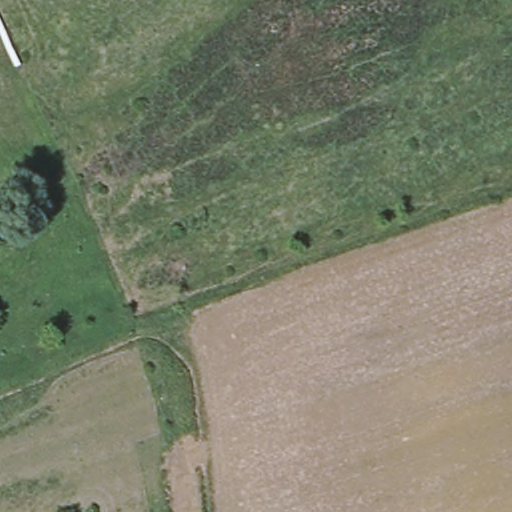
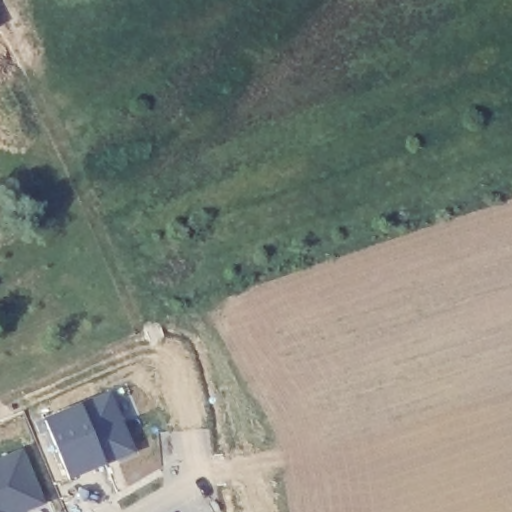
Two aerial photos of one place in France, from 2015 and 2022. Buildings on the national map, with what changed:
new [(45,420),(81,405),(112,393),(136,451),(106,464),(69,478),(45,420)]
new [(22,452),(41,503),(20,512),(0,512),(0,462),(22,452)]

